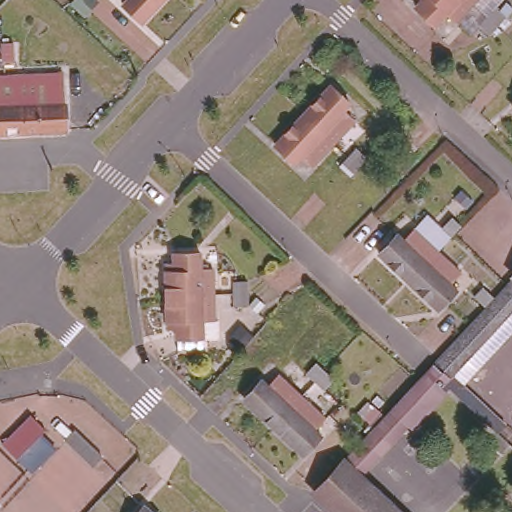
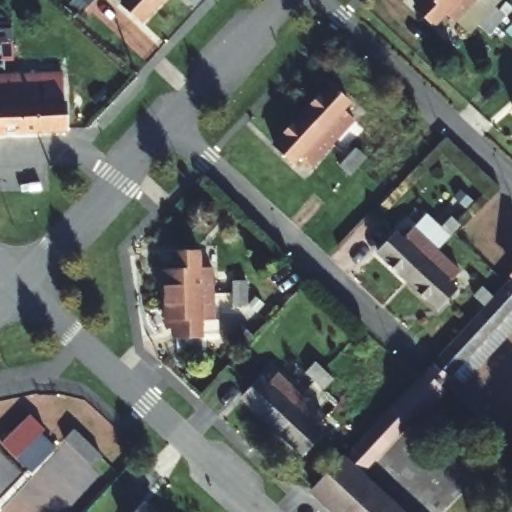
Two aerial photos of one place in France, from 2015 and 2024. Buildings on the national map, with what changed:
unchanged [(136,23),(116,4),(119,0),(157,0),(136,23)]
unchanged [(470,2),(452,21),(444,13),(434,25),(414,7),(420,0),(468,0),(470,2)]
unchanged [(470,2),(468,0),(471,0),(470,2)]
unchanged [(504,16),(495,25),(487,34),(477,24),(485,16),(493,7),(504,16)]
unchanged [(65,129),(0,131),(0,75),(55,73),(55,67),(60,66),(60,73),(62,73),(65,129)]
unchanged [(319,81),(339,99),(334,105),(344,115),(322,138),(292,110),(319,81)]
unchanged [(322,138),(300,162),(290,152),(285,158),(265,139),(292,110),(322,138)]
unchanged [(417,149),(400,169),(389,159),(407,140),(417,149)]
unchanged [(339,166),(347,158),(355,149),(365,158),(357,167),(349,176),(339,166)]
unchanged [(420,266),(401,286),(372,259),(390,239),(395,244),(405,233),(429,255),(420,266)]
unchanged [(195,264),(205,263),(207,289),(160,291),(159,268),(162,268),(161,259),(168,259),(167,249),(194,248),(195,264)]
unchanged [(420,266),(429,255),(453,277),(444,287),(449,293),(430,313),(401,286),(420,266)]
unchanged [(512,270),(512,307),(447,375),(499,423),(491,432),(444,388),(424,370),(510,277),(508,275),(512,270)]
unchanged [(232,306),(232,294),(232,281),(245,281),(246,293),(247,305),(232,306)]
unchanged [(172,347),(171,332),(170,323),(164,323),(164,315),(161,315),(160,291),(207,289),(207,315),(212,315),(212,330),(197,331),(198,346),(172,347)]
unchanged [(325,386),(316,378),(315,378),(307,370),(317,360),(325,367),(325,368),(335,376),(325,386)]
unchanged [(405,429),(401,424),(386,410),(424,370),(444,388),(405,429)]
unchanged [(264,433),(235,406),(253,386),(259,391),(268,381),(292,403),(264,433)]
unchanged [(315,425),(305,435),(311,441),(292,461),(264,433),(292,403),(315,425)]
unchanged [(354,475),(340,461),(386,410),(401,424),(354,475)]
unchanged [(0,442),(29,414),(43,428),(15,456),(0,442)]
unchanged [(332,512),(309,490),(337,459),(340,461),(354,475),(394,512),(332,512)]
unchanged [(151,512),(136,512),(143,505),(151,512)]

